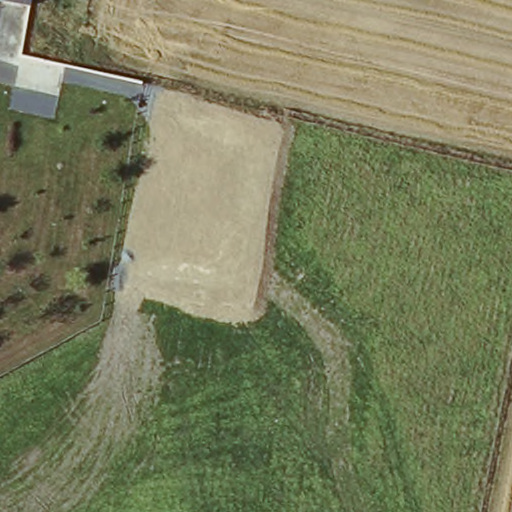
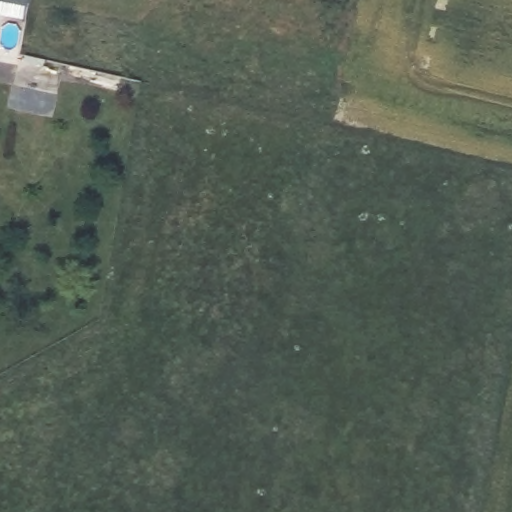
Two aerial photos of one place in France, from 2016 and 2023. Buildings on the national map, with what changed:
unchanged [(35,11),(27,10),(0,4),(0,0),(36,0),(35,11)]

